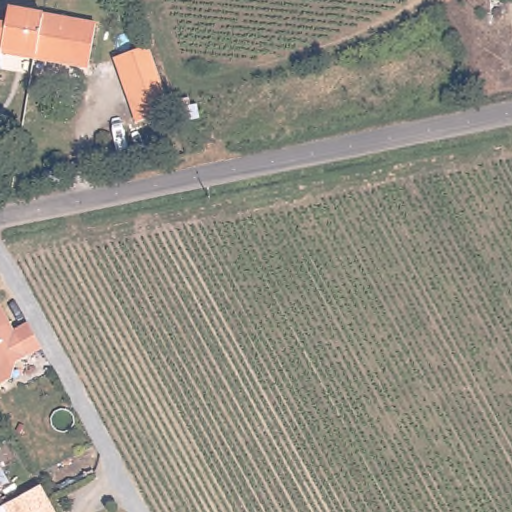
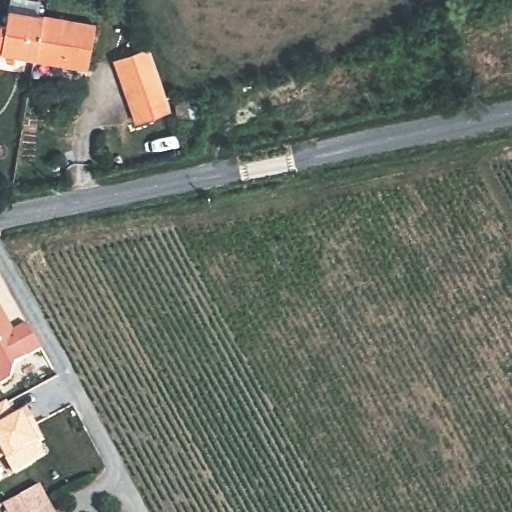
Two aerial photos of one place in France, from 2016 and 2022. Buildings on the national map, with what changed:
unchanged [(12,8),(101,23),(93,69),(6,55),(2,71),(0,71),(0,22),(10,24),(12,8)]
unchanged [(152,47),(175,111),(140,123),(117,59),(152,47)]
unchanged [(180,101),(194,98),(181,107),(180,101)]
unchanged [(201,104),(204,119),(184,122),(194,105),(201,104)]
unchanged [(3,381),(0,376),(0,302),(16,327),(27,321),(41,346),(17,357),(9,378),(3,381)]
new [(13,416),(24,411),(42,444),(39,445),(46,456),(13,473),(5,457),(0,460),(0,403),(6,400),(13,416)]
unchanged [(44,484),(58,512),(7,512),(4,506),(44,484)]

